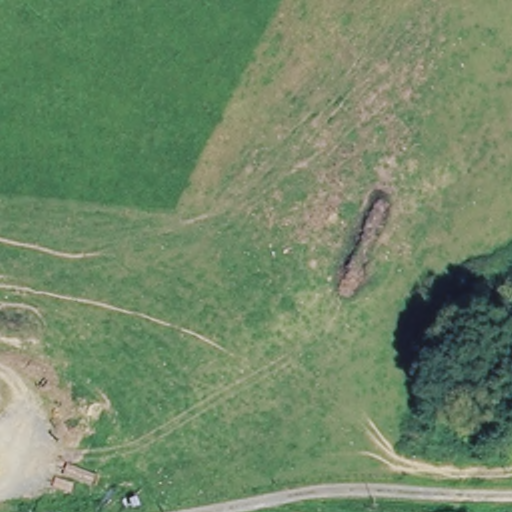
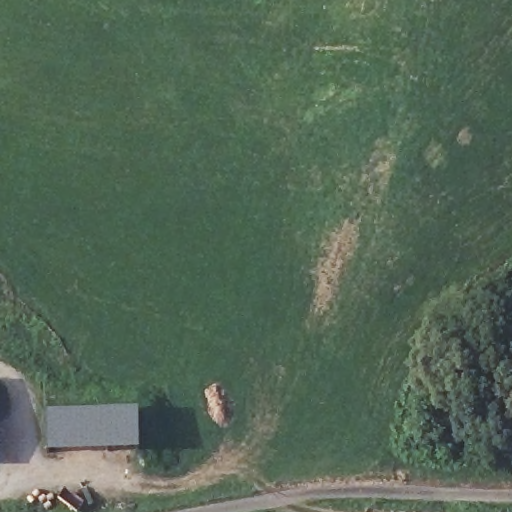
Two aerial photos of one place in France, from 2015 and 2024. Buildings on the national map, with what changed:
new [(46,410),(137,409),(139,451),(47,452),(46,410)]

